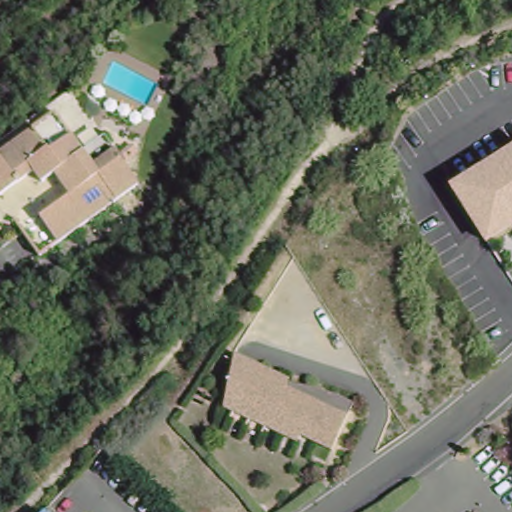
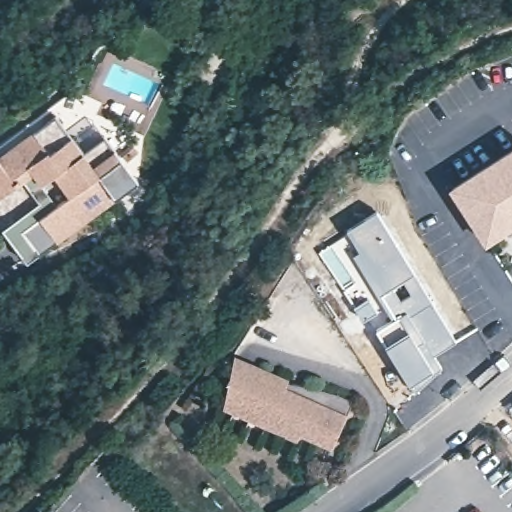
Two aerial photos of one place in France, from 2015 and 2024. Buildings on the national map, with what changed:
unchanged [(56,174),(43,183),(35,172),(25,179),(0,197),(0,155),(56,115),(83,150),(105,136),(140,182),(57,240),(40,217),(72,195),(56,174)]
unchanged [(453,187),(512,149),(512,224),(487,240),(453,187)]
new [(43,183),(56,174),(72,195),(40,217),(57,240),(45,249),(22,217),(42,202),(25,179),(35,172),(43,183)]
new [(376,210),(410,263),(456,342),(433,355),(441,368),(413,391),(375,327),(392,317),(351,255),(350,253),(355,249),(346,232),(345,229),(376,210)]
unchanged [(315,439),(298,432),(295,438),(280,431),(263,424),(247,417),(231,410),(221,406),(230,360),(232,353),(298,382),(313,384),(332,391),(351,398),(345,411),(333,439),(330,446),(315,439)]
unchanged [(41,510),(44,512),(40,512),(41,510)]

